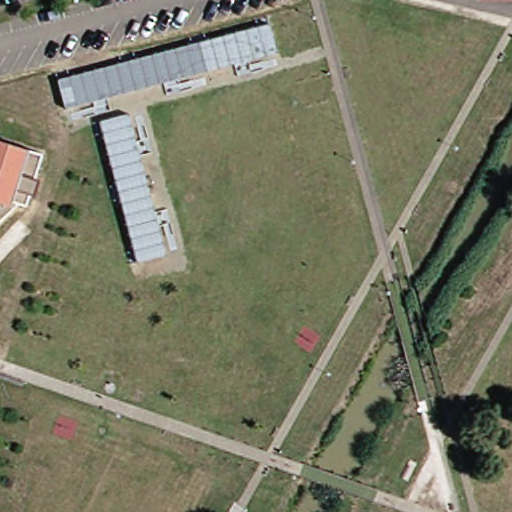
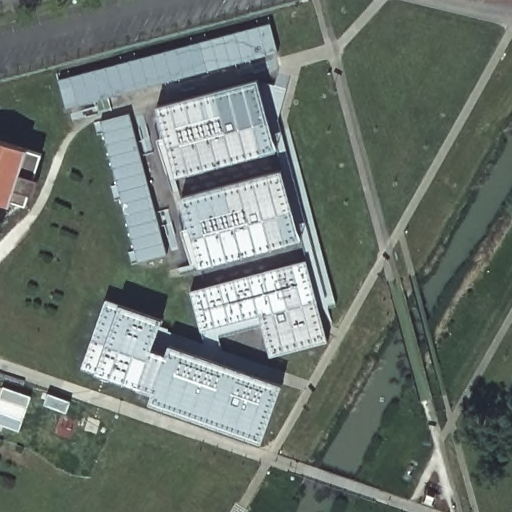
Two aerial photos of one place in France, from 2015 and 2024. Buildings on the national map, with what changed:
unchanged [(275,51),(66,111),(59,79),(269,22),(275,51)]
new [(157,328),(202,344),(204,336),(201,335),(202,330),(192,292),(306,261),(301,240),(201,267),(183,197),(282,171),(277,150),(175,177),(156,107),(258,80),(283,86),(284,89),(271,92),(299,195),(306,193),(336,307),(320,311),(328,341),(272,356),(265,326),(220,340),(226,352),(272,368),(268,380),(281,384),(261,442),(151,403),(154,394),(83,369),(106,303),(160,322),(157,328)]
unchanged [(127,112),(166,251),(137,262),(98,120),(127,112)]
unchanged [(16,205),(1,201),(0,203),(0,146),(31,156),(16,205)]

